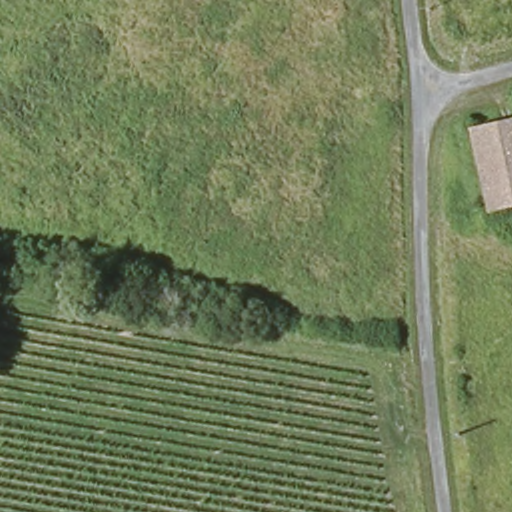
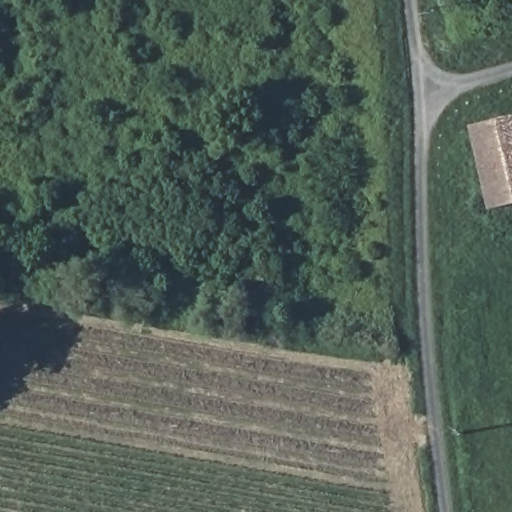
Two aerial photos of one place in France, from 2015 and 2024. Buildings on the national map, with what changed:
unchanged [(512,121),(512,207),(481,214),(463,132),(512,121)]

